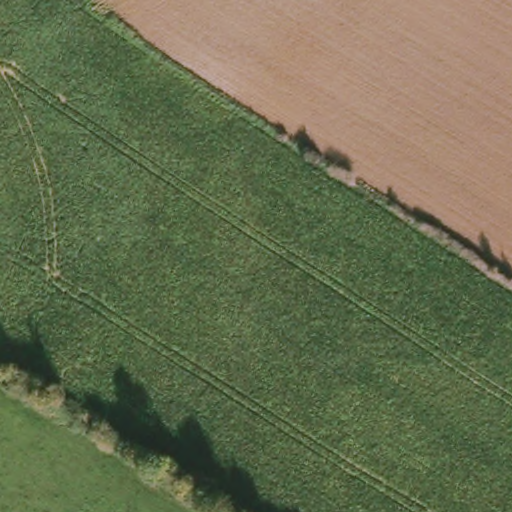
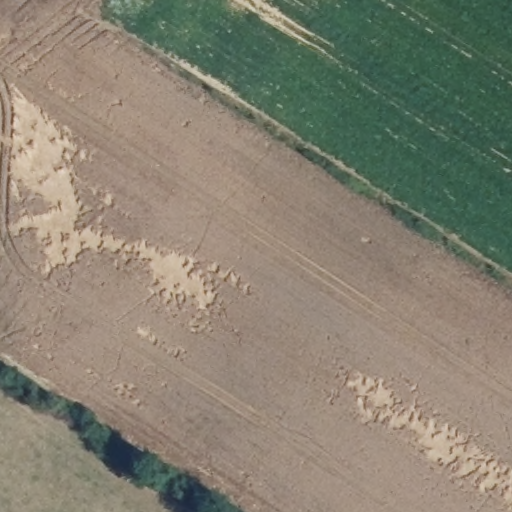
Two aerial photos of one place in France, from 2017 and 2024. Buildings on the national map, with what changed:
[]

